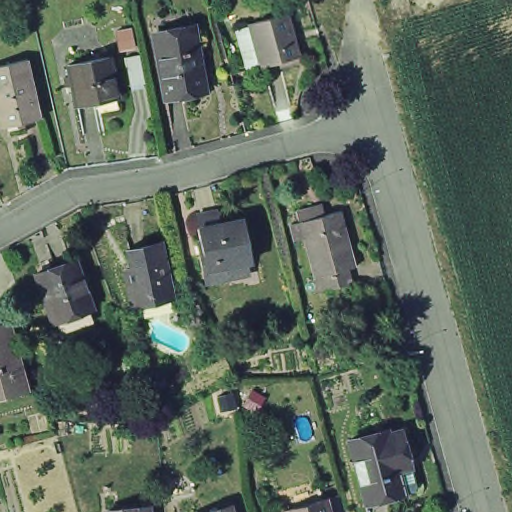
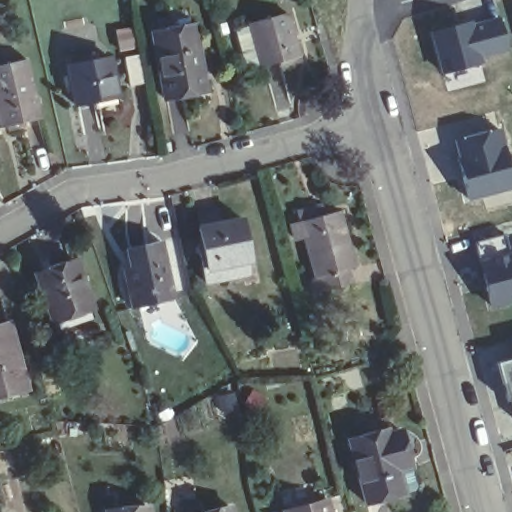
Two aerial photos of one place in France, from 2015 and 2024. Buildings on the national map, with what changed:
new [(478,59),(480,63),(443,74),(431,33),(468,21),(469,25),(498,18),(507,50),(478,59)]
unchanged [(286,20),(298,60),(259,71),(248,30),(286,20)]
unchanged [(104,51),(101,32),(116,29),(119,47),(104,51)]
unchanged [(208,91),(168,99),(155,40),(191,33),(198,66),(203,66),(208,91)]
unchanged [(127,55),(131,83),(113,88),(106,59),(127,55)]
unchanged [(66,105),(58,64),(96,56),(106,96),(108,104),(85,109),(83,101),(66,105)]
unchanged [(43,116),(1,125),(0,120),(0,63),(28,57),(43,116)]
new [(512,177),(512,190),(469,201),(455,138),(502,125),(512,177)]
unchanged [(297,230),(294,219),(311,215),(319,213),(323,224),(336,220),(351,275),(311,286),(297,230)]
unchanged [(198,234),(194,219),(214,215),(218,229),(238,223),(248,264),(224,270),(228,279),(204,284),(194,249),(198,248),(193,234),(198,234)]
new [(509,253),(512,252),(512,303),(489,309),(478,266),(477,262),(479,262),(474,242),(504,234),(509,253)]
unchanged [(134,310),(128,286),(136,284),(128,253),(159,244),(173,300),(134,310)]
unchanged [(58,332),(54,320),(50,320),(33,273),(73,260),(89,309),(95,321),(58,332)]
unchanged [(34,393),(0,401),(0,328),(18,324),(34,393)]
new [(512,357),(512,409),(494,363),(512,357)]
unchanged [(382,432),(383,435),(401,431),(414,488),(364,501),(348,440),(382,432)]
unchanged [(278,511),(317,499),(321,512),(278,512),(278,511)]
unchanged [(221,507),(223,512),(203,512),(221,507)]
unchanged [(140,511),(140,512),(123,512),(140,511)]

